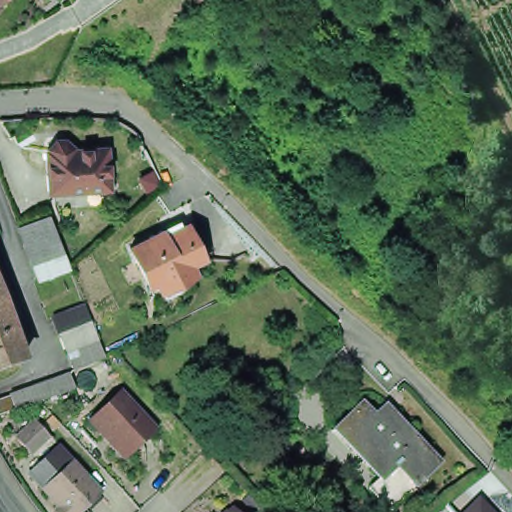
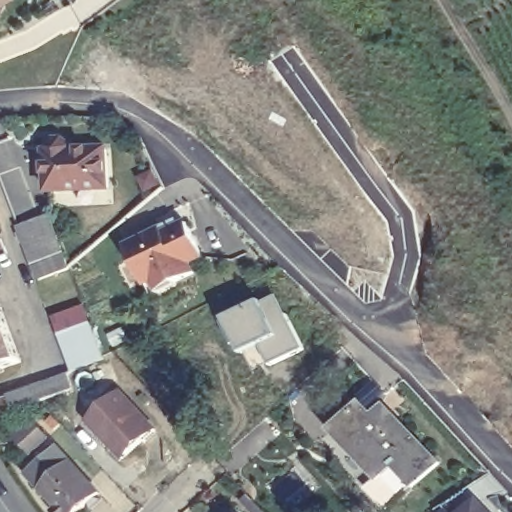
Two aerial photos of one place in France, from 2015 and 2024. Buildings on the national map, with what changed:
unchanged [(0,6),(0,0),(6,0),(7,2),(0,6)]
unchanged [(48,152),(48,150),(55,142),(64,141),(72,147),(73,153),(77,153),(79,151),(106,149),(109,190),(48,193),(46,152),(48,152)]
unchanged [(32,261),(26,245),(19,226),(49,214),(56,233),(62,249),(69,267),(39,278),(32,261)]
unchanged [(148,291),(129,252),(148,244),(148,242),(161,235),(164,241),(186,230),(203,263),(190,270),(195,279),(176,288),(153,301),(148,291)]
new [(276,299),(301,351),(251,375),(225,325),(276,299)]
unchanged [(68,352),(61,335),(53,317),(84,306),(91,323),(98,341),(104,357),(73,368),(68,352)]
unchanged [(0,366),(0,313),(18,360),(0,366)]
unchanged [(39,386),(49,382),(59,378),(69,375),(75,388),(64,392),(54,396),(45,400),(41,401),(35,403),(26,407),(15,411),(0,416),(0,400),(9,397),(21,392),(31,388),(39,386)]
unchanged [(104,437),(89,422),(120,391),(157,430),(129,456),(124,460),(104,437)]
unchanged [(361,403),(374,416),(383,407),(392,417),(440,467),(414,491),(394,470),(378,482),(377,481),(331,432),(361,403)]
unchanged [(49,436),(31,454),(18,440),(36,422),(49,436)]
unchanged [(62,508),(45,490),(73,462),(103,493),(83,512),(59,512),(62,508)]
unchanged [(378,482),(394,470),(414,491),(389,512),(385,512),(366,491),(377,481),(378,482)]
unchanged [(479,498),(491,512),(463,512),(479,498)]

